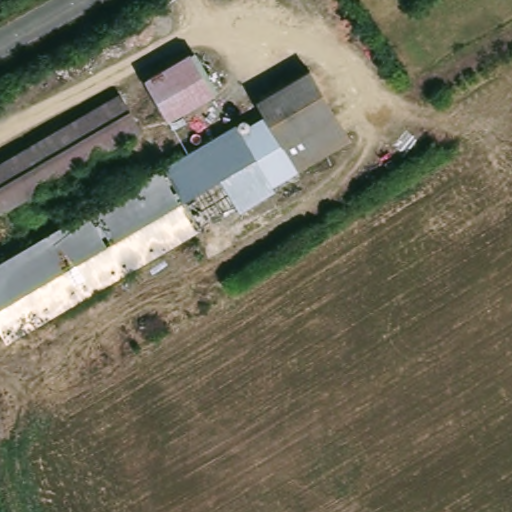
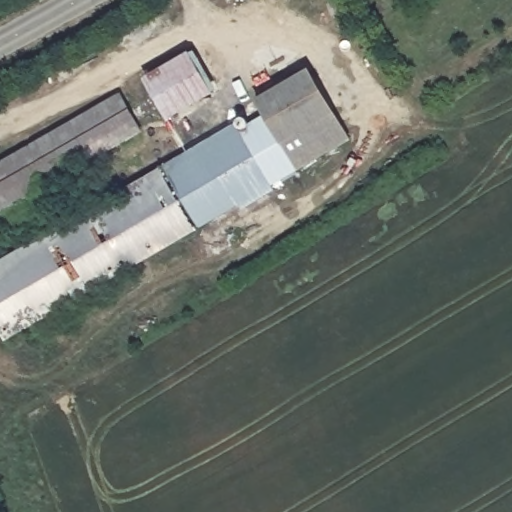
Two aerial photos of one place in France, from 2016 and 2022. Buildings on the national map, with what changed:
unchanged [(173,118),(168,110),(150,78),(195,53),(214,84),(218,91),(173,118)]
unchanged [(241,123),(251,118),(256,127),(270,116),(265,100),(314,72),(342,117),(356,143),(12,345),(0,323),(0,264),(241,123)]
unchanged [(143,130),(2,211),(0,207),(0,167),(125,97),(143,130)]

